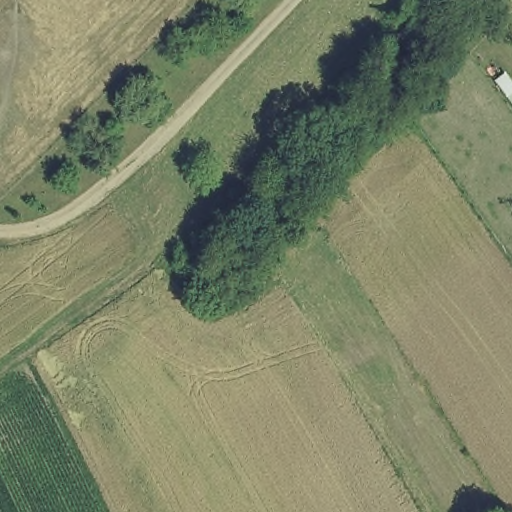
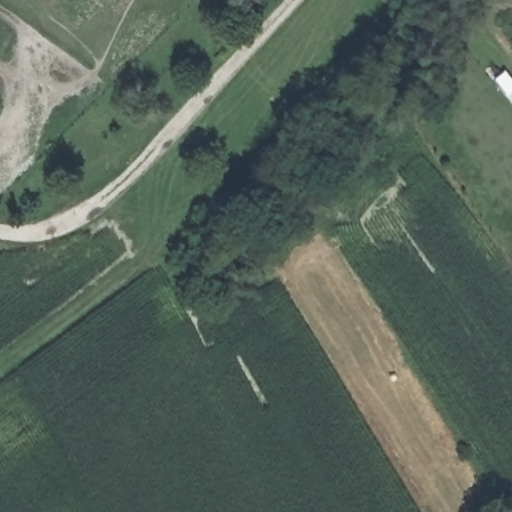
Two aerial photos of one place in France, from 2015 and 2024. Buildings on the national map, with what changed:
[]

